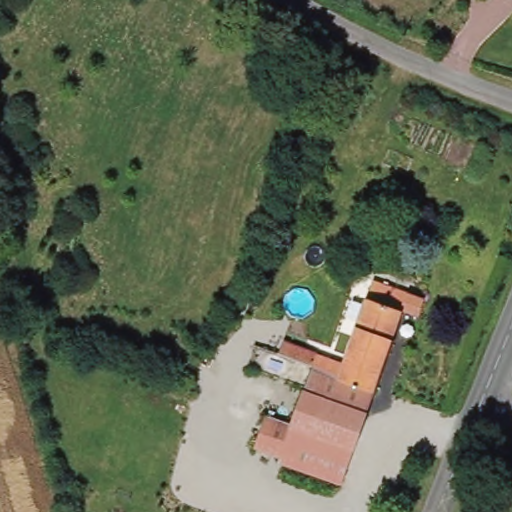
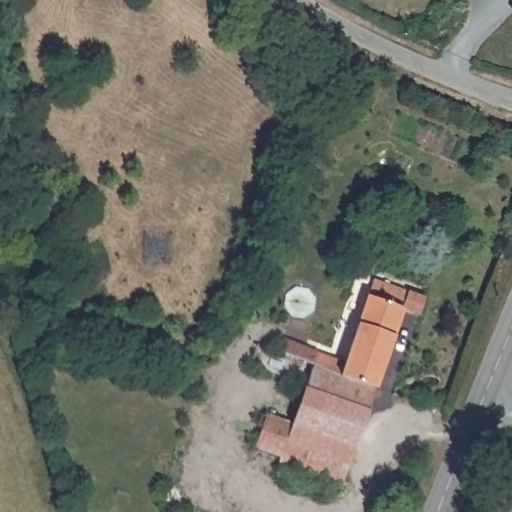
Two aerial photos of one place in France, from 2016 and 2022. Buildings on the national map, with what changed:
unchanged [(321,351),(348,359),(376,278),(412,290),(376,391),(315,368),(321,351)]
unchanged [(297,419),(315,368),(376,391),(343,486),(283,466),(281,460),(257,453),(258,446),(272,412),(297,419)]

